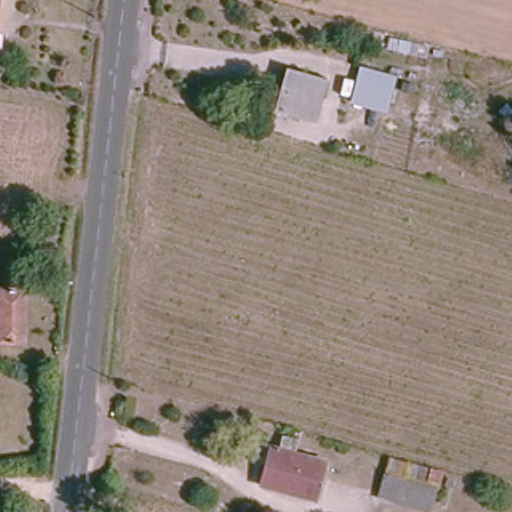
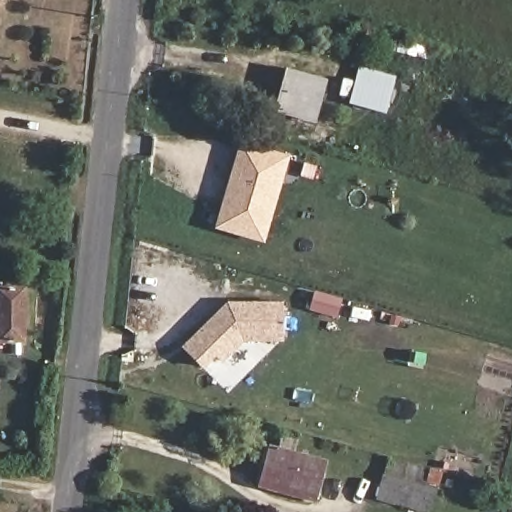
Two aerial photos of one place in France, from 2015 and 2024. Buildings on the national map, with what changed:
unchanged [(385,111),(350,103),(358,68),(394,76),(385,111)]
unchanged [(278,110),(288,69),(323,79),(313,119),(278,110)]
new [(291,155),(266,240),(215,228),(240,141),(291,155)]
unchanged [(27,338),(0,339),(0,285),(28,285),(27,338)]
new [(284,301),(284,340),(244,340),(224,362),(218,355),(204,369),(182,346),(228,301),(284,301)]
unchanged [(318,495),(262,480),(266,466),(272,441),(327,457),(322,481),(318,495)]
unchanged [(441,470),(429,512),(381,498),(393,456),(441,470)]
unchanged [(511,490),(512,491),(512,505),(508,504),(511,490)]

